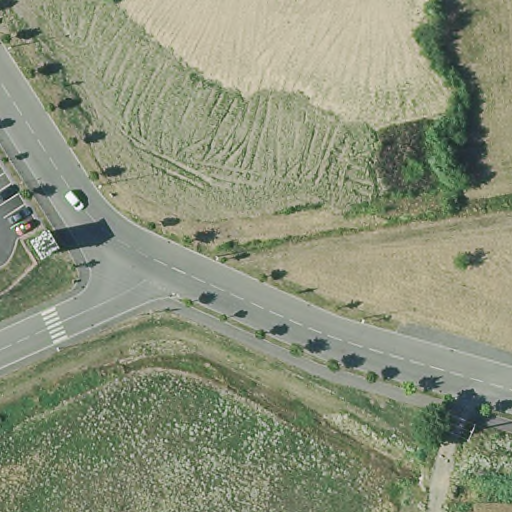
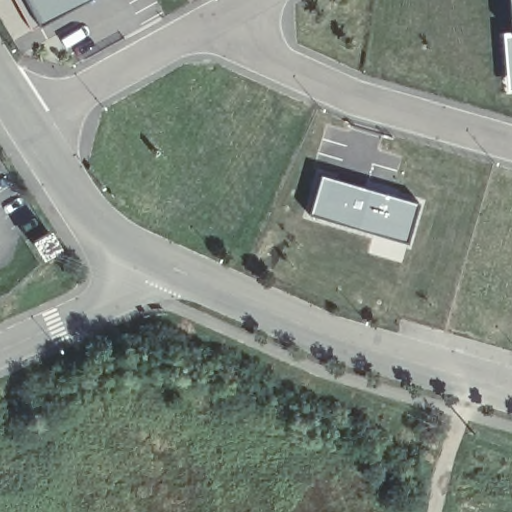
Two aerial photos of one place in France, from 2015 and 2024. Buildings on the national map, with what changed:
new [(29,32),(12,0),(86,0),(29,32)]
new [(507,94),(502,34),(512,35),(508,0),(512,0),(512,93),(507,94)]
new [(320,173),(419,202),(407,244),(309,214),(320,173)]

